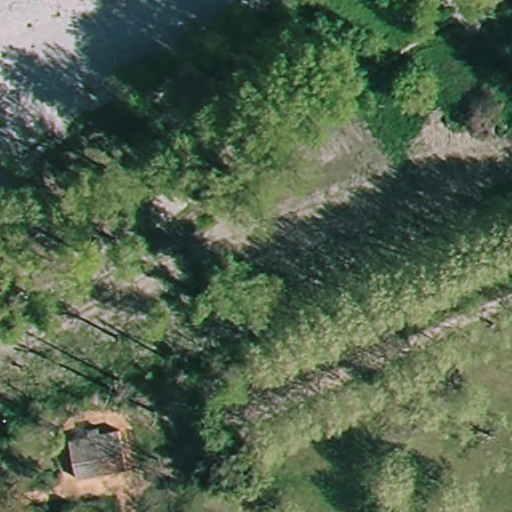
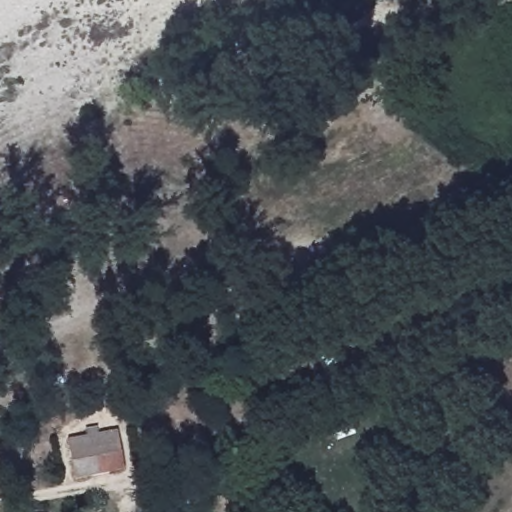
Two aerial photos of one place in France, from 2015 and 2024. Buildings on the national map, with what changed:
unchanged [(65,441),(114,433),(119,463),(120,473),(71,481),(70,470),(65,441)]

